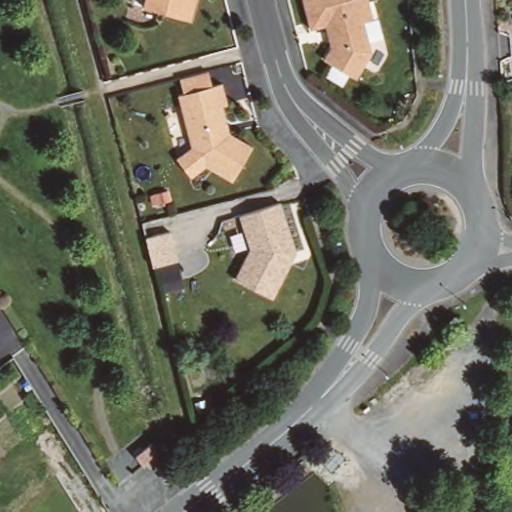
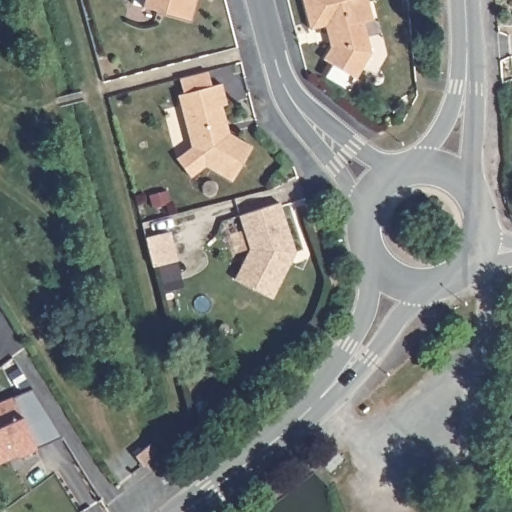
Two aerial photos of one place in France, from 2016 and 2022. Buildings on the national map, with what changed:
unchanged [(141,10),(143,0),(194,0),(189,22),(141,10)]
unchanged [(326,48),(321,26),(306,31),(297,0),(362,0),(368,20),(358,22),(367,53),(352,79),(319,61),(326,48)]
unchanged [(232,184),(205,169),(190,182),(175,164),(190,151),(174,99),(217,86),(223,106),(218,108),(227,136),(250,149),(232,184)]
unchanged [(126,184),(143,179),(146,189),(129,193),(126,184)]
unchanged [(234,282),(249,251),(237,218),(277,204),(295,254),(272,301),(234,282)]
unchanged [(163,234),(171,263),(147,270),(139,241),(163,234)]
new [(6,466),(5,464),(0,466),(0,404),(16,396),(34,422),(49,443),(24,456),(6,466)]
unchanged [(138,445),(141,441),(145,438),(154,449),(146,456),(139,462),(134,456),(129,452),(138,445)]

